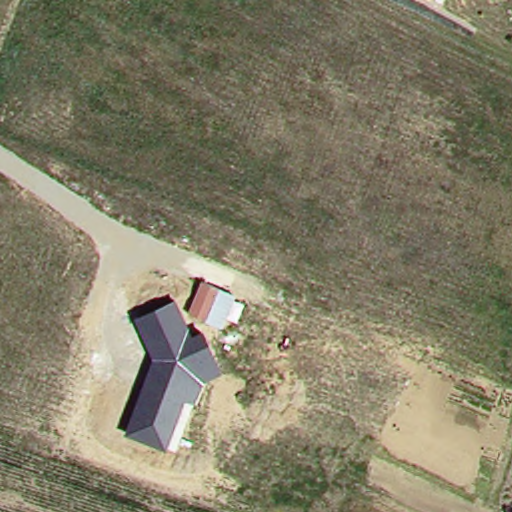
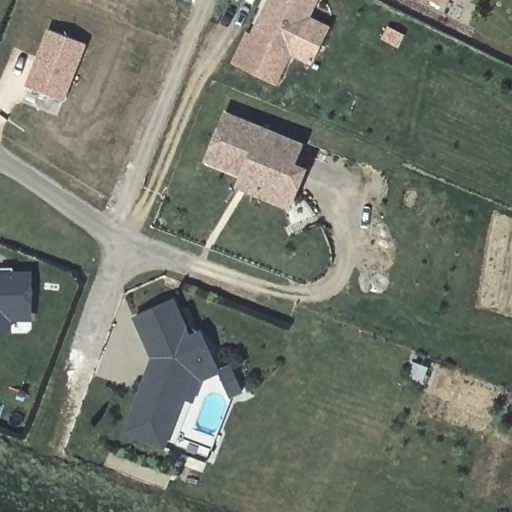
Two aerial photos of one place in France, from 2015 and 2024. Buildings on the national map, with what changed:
new [(250,35),(267,0),(318,0),(291,55),(250,35)]
new [(50,29),(86,43),(65,97),(29,82),(50,29)]
new [(277,85),(232,64),(245,32),(250,35),(291,55),(277,85)]
new [(296,163),(307,168),(292,210),(236,187),(240,176),(204,162),(225,111),(305,143),(296,163)]
new [(13,321),(13,333),(0,333),(0,272),(32,272),(32,321),(13,321)]
unchanged [(152,359),(135,317),(176,298),(191,335),(204,329),(222,373),(203,381),(196,403),(185,400),(167,450),(124,434),(152,359)]

